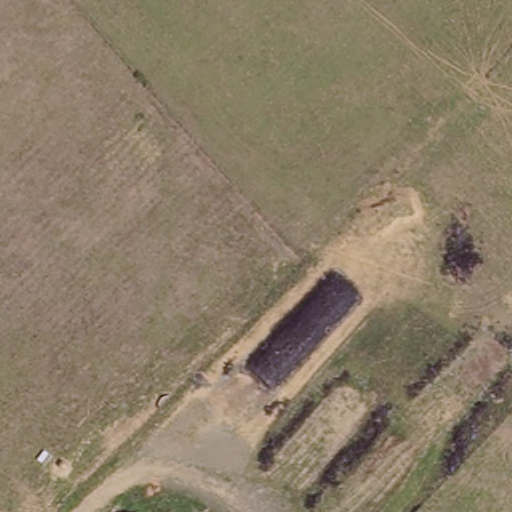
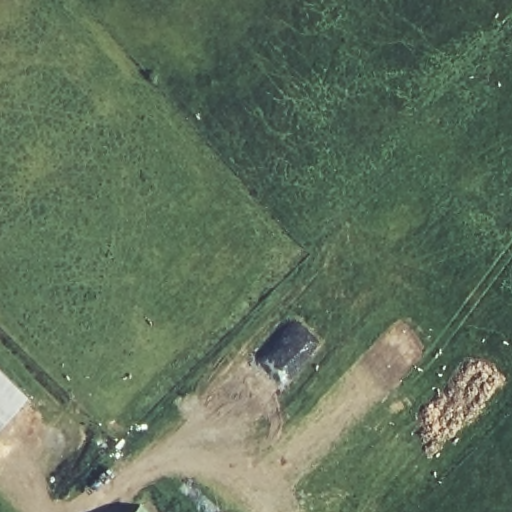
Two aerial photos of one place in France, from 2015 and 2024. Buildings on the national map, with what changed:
new [(0,370),(28,397),(0,426),(0,370)]
unchanged [(142,503),(151,512),(134,512),(142,503)]

